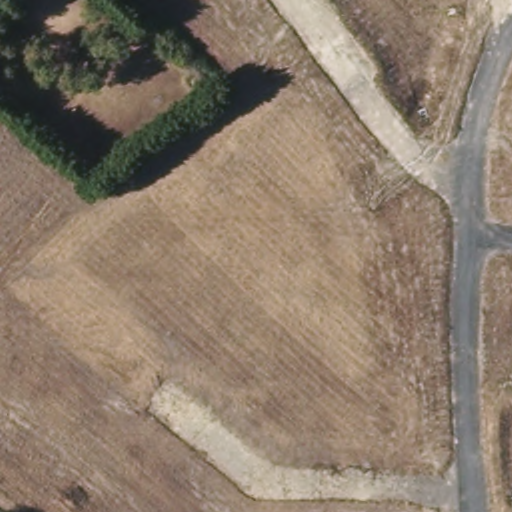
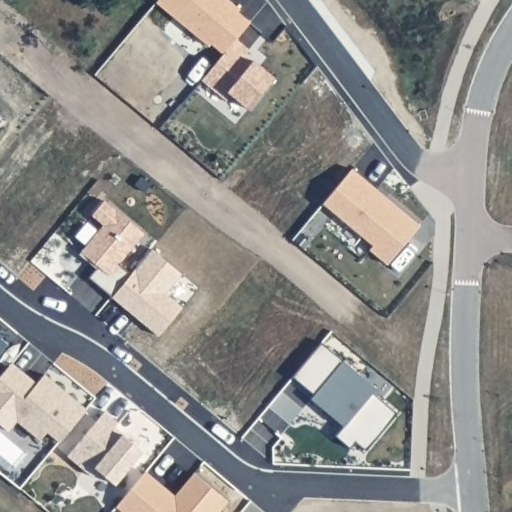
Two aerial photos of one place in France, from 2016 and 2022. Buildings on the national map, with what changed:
new [(234,38),(247,49),(244,53),(272,76),(247,107),(230,94),(225,99),(200,79),(234,38)]
new [(375,188),(385,196),(418,224),(386,263),(368,248),(372,244),(322,202),(351,167),(375,188)]
new [(102,224),(91,215),(103,200),(142,232),(117,262),(130,273),(111,296),(87,277),(97,265),(80,251),(102,224)]
new [(111,296),(130,273),(151,248),(180,272),(164,292),(181,306),(157,334),(141,321),(124,307),(111,296)]
new [(0,350),(0,337),(7,342),(0,350)]
new [(291,375),(320,340),(376,386),(372,391),(397,411),(365,449),(355,440),(350,447),(335,434),(342,424),(322,407),(310,397),(313,393),(291,375)]
new [(52,449),(39,439),(32,447),(9,428),(0,438),(0,351),(12,360),(11,362),(36,382),(43,373),(86,408),(52,449)]
new [(104,410),(117,421),(114,426),(142,450),(114,483),(97,469),(92,475),(67,454),(104,410)]
new [(174,495),(193,471),(227,499),(217,512),(123,512),(115,505),(144,470),(169,490),(174,495)]

